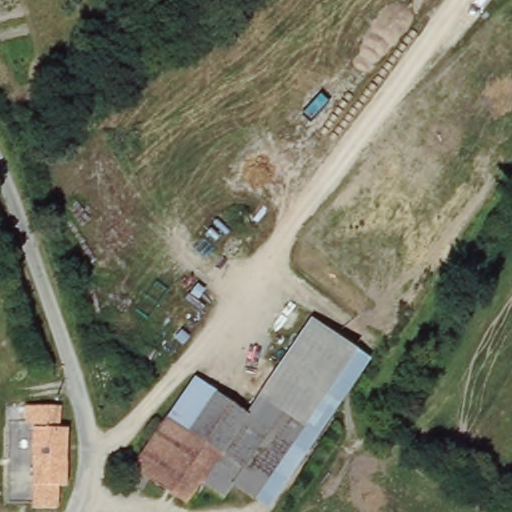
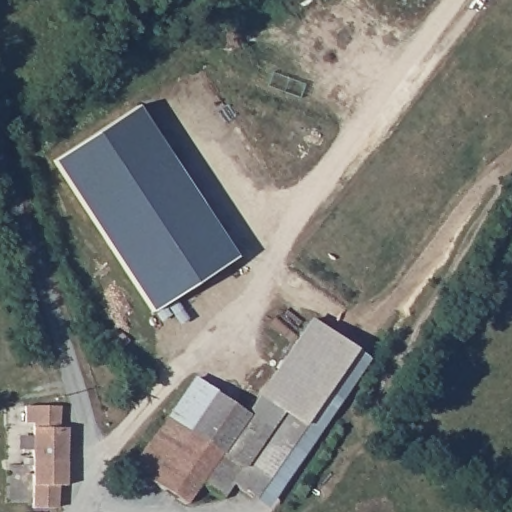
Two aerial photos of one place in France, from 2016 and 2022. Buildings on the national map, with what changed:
new [(137,106),(236,257),(152,312),(53,161),(137,106)]
unchanged [(286,357),(312,321),(355,351),(330,387),(320,401),(290,445),(247,414),(286,357)]
unchanged [(290,445),(253,498),(232,484),(243,466),(168,416),(195,378),(247,414),(290,445)]
unchanged [(320,401),(337,413),(307,457),(290,445),(320,401)]
unchanged [(38,410),(42,410),(60,410),(66,410),(65,432),(74,433),(72,490),(64,490),(63,512),(39,512),(39,508),(38,426),(31,426),(31,410),(38,410)]
unchanged [(243,466),(232,484),(223,496),(202,482),(189,502),(132,465),(167,415),(168,416),(243,466)]

